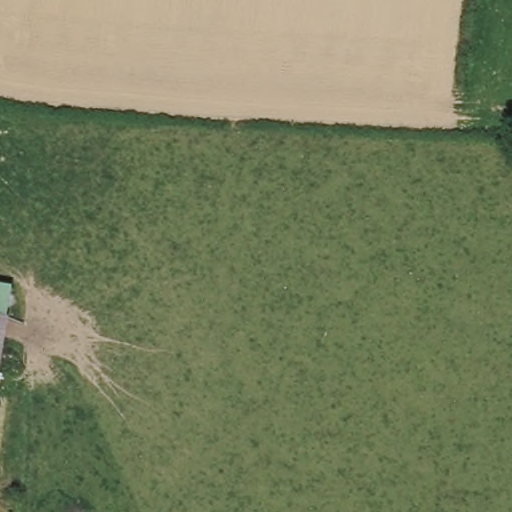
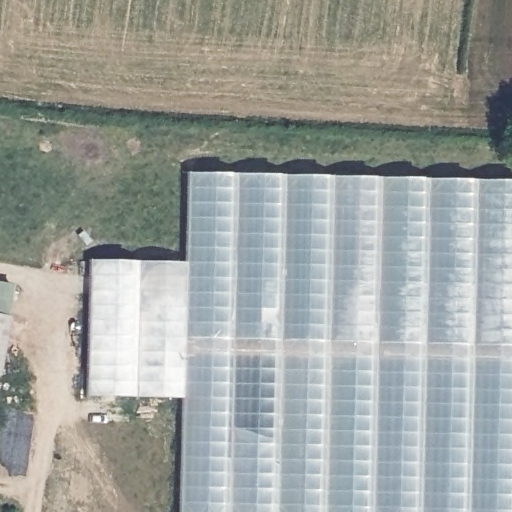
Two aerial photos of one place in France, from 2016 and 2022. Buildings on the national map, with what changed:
new [(179,398),(85,397),(88,261),(184,262),(186,174),(512,181),(512,512),(177,512),(179,398)]
unchanged [(12,313),(0,312),(0,283),(16,286),(12,313)]
unchanged [(0,381),(0,312),(12,313),(0,381)]
demolished [(3,512),(0,512),(0,505),(2,505),(3,512)]

